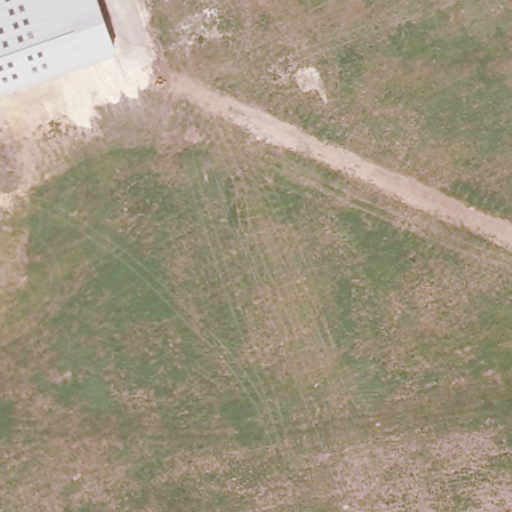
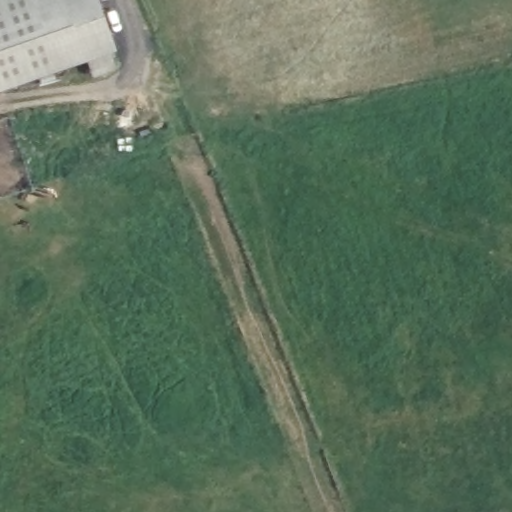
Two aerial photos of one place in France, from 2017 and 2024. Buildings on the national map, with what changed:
unchanged [(115,49),(0,89),(0,0),(98,0),(115,49)]

